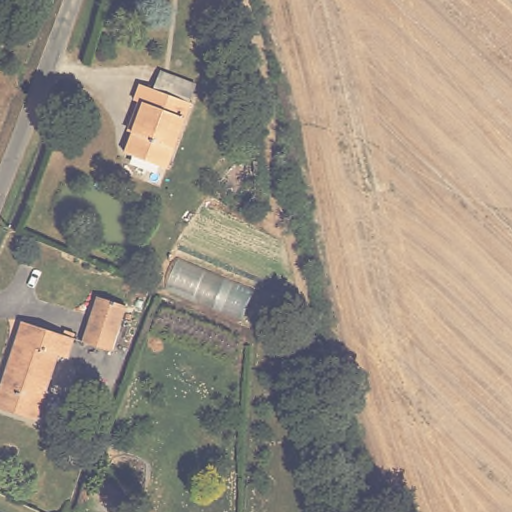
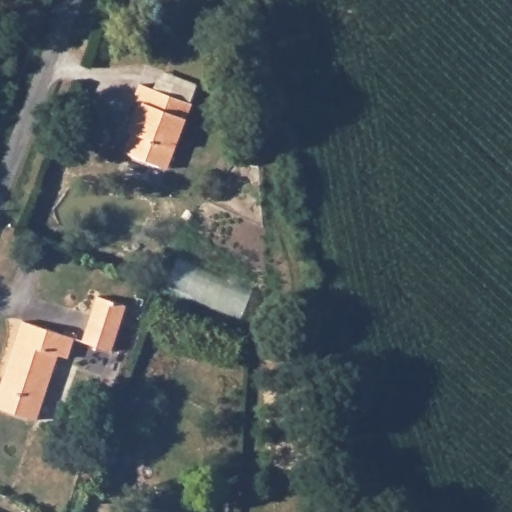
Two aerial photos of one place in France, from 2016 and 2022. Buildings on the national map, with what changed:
unchanged [(139,82),(193,104),(168,168),(127,153),(145,105),(133,100),(139,82)]
unchanged [(109,348),(80,339),(95,296),(124,306),(109,348)]
unchanged [(58,353),(36,417),(0,404),(0,388),(24,318),(76,336),(70,357),(58,353)]

